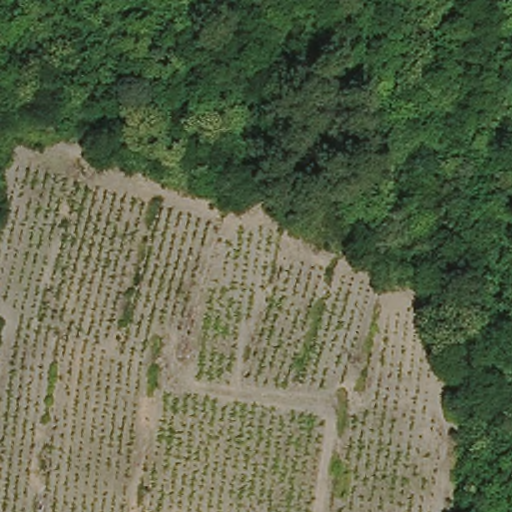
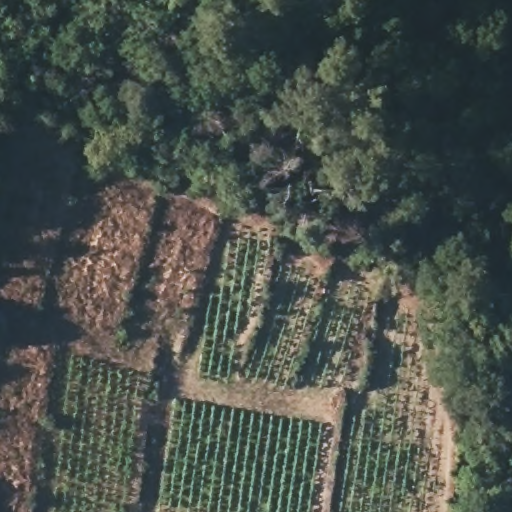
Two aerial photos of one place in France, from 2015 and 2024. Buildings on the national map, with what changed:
unchanged [(400,76),(421,80),(418,102),(397,97),(400,76)]

